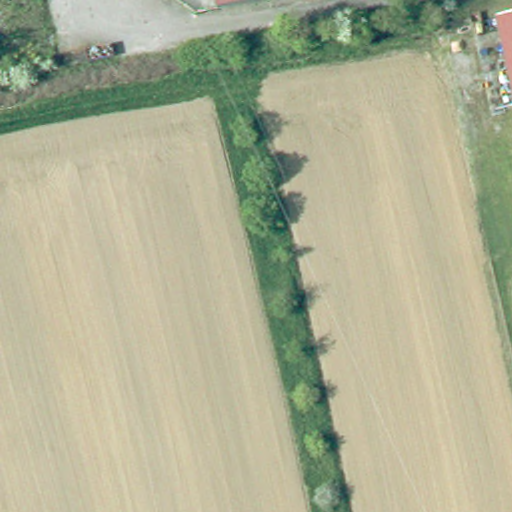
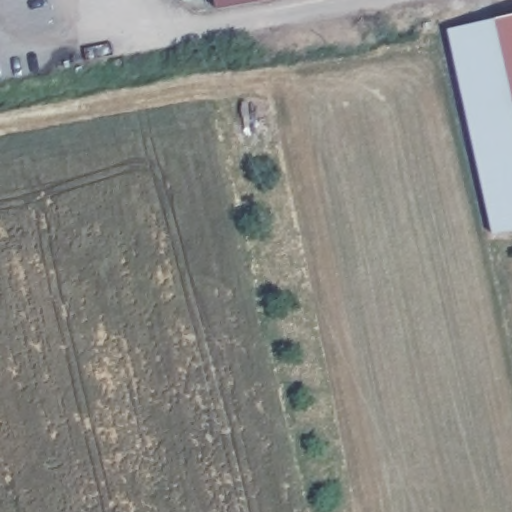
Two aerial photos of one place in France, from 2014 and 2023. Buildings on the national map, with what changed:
unchanged [(512,14),(512,104),(494,17),(512,14)]
new [(512,104),(512,224),(492,229),(448,31),(494,17),(512,104)]

